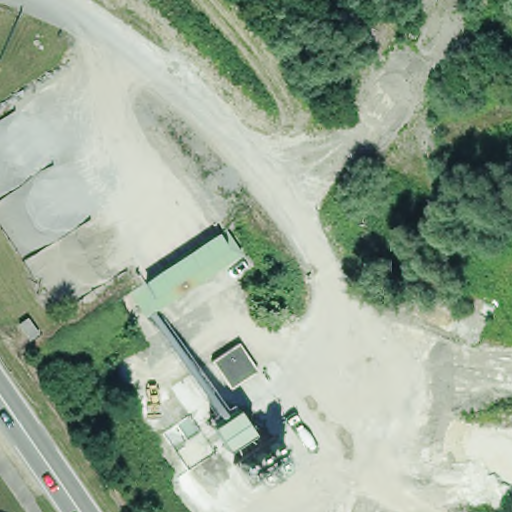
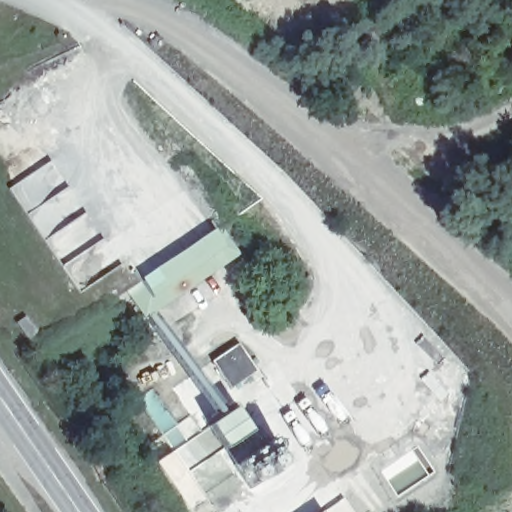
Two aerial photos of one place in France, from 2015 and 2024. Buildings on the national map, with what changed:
unchanged [(226,257),(157,295),(144,275),(211,231),(226,257)]
unchanged [(235,384),(219,361),(216,357),(242,340),(260,366),(252,373),(235,384)]
unchanged [(235,408),(251,433),(227,447),(210,424),(235,408)]

